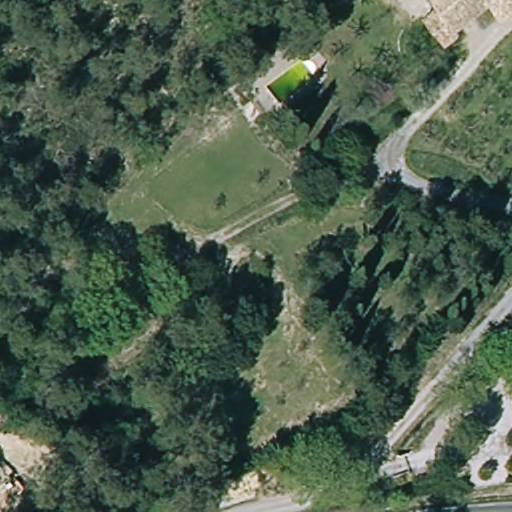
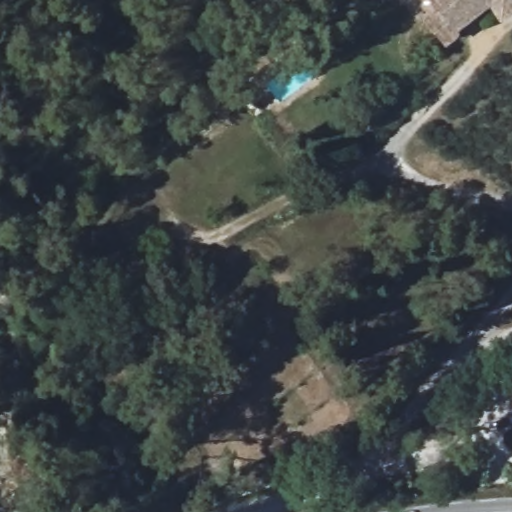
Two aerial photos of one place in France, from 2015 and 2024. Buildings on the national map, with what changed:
unchanged [(492,5),(446,51),(420,21),(432,11),(424,0),(512,0),(512,20),(508,23),(492,5)]
unchanged [(259,64),(297,39),(308,55),(270,79),(259,64)]

